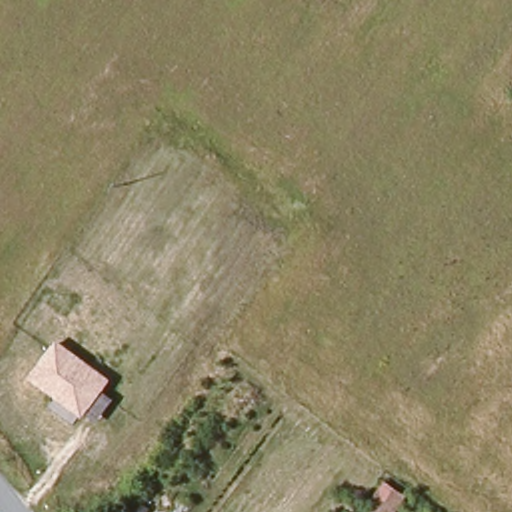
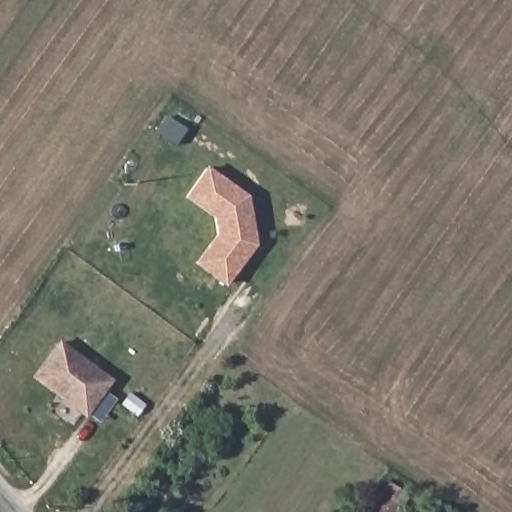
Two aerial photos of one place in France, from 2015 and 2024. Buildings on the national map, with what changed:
new [(219,236),(217,218),(189,197),(209,169),(249,199),(251,217),(249,221),(250,230),(254,233),(256,246),(225,285),(214,276),(197,263),(210,248),(219,236)]
unchanged [(103,391),(114,399),(98,422),(87,413),(84,418),(30,378),(58,340),(112,380),(103,391)]

